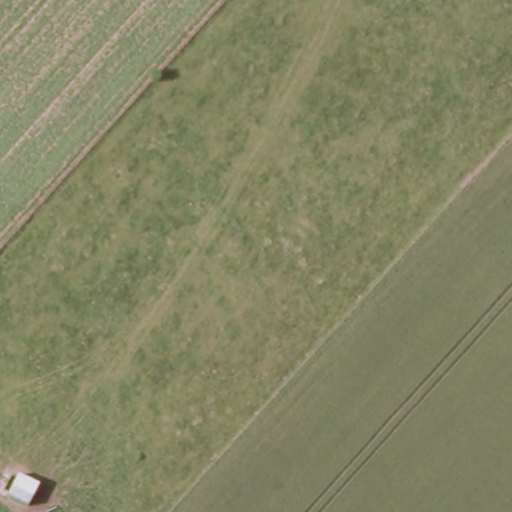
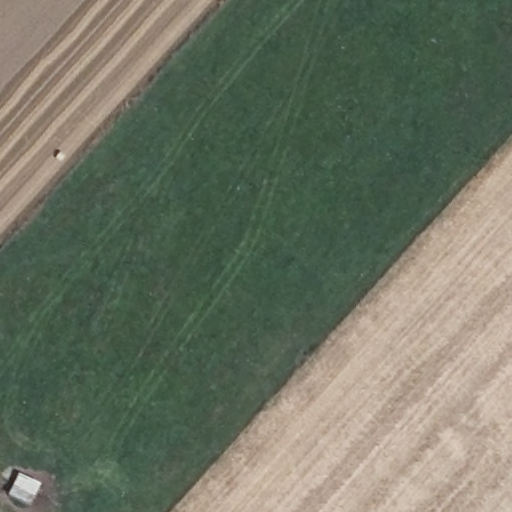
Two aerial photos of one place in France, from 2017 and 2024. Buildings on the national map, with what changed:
unchanged [(13,477),(40,482),(37,501),(10,497),(13,477)]

